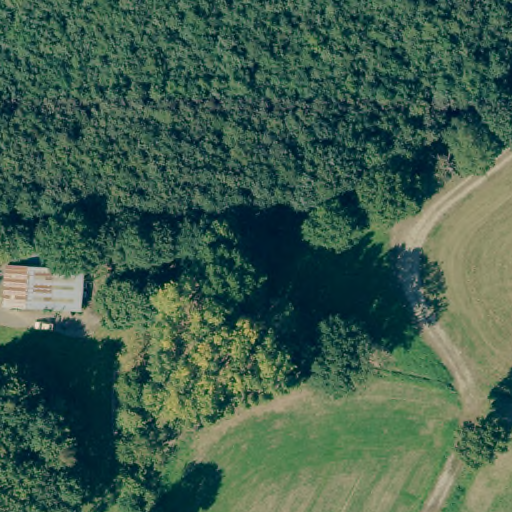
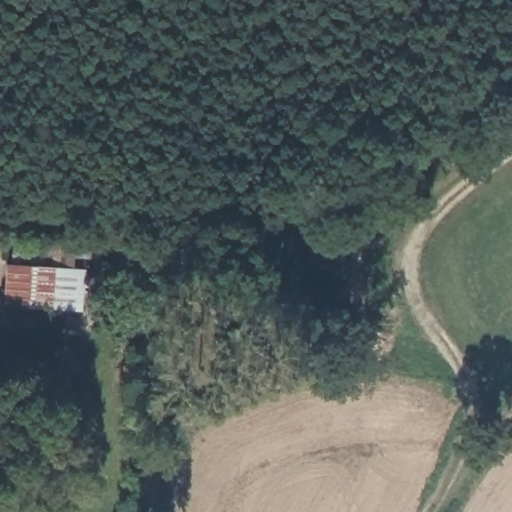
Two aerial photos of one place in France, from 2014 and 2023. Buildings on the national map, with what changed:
unchanged [(76,296),(0,294),(0,280),(1,253),(77,256),(76,296)]

